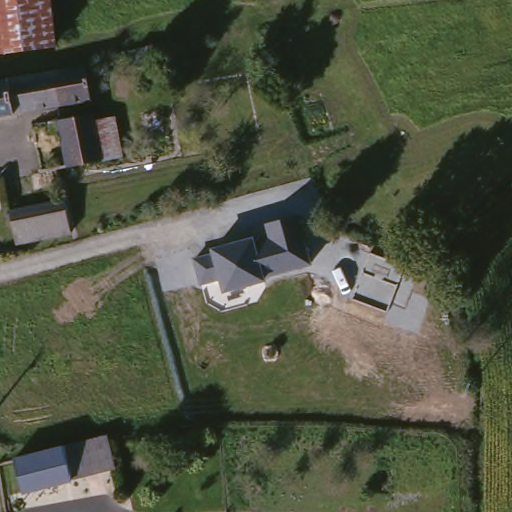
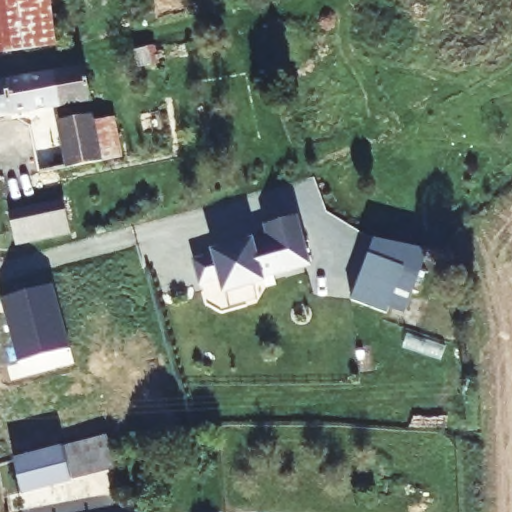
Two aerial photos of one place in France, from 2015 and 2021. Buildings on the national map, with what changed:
unchanged [(46,51),(0,58),(0,0),(39,0),(46,51)]
unchanged [(35,78),(89,70),(94,101),(24,112),(0,116),(0,83),(35,78)]
unchanged [(52,124),(91,116),(93,124),(115,119),(123,161),(64,173),(52,124)]
unchanged [(65,207),(70,240),(11,252),(5,214),(65,207)]
unchanged [(262,278),(265,283),(221,293),(218,281),(200,285),(193,257),(212,251),(211,246),(256,235),(258,242),(267,240),(265,224),(299,217),(310,264),(262,278)]
new [(406,266),(405,271),(418,276),(405,313),(390,306),(388,312),(352,299),(370,253),(406,266)]
new [(2,298),(54,284),(70,348),(18,362),(2,298)]
unchanged [(100,447),(103,478),(66,485),(64,455),(100,447)]
unchanged [(64,455),(66,485),(17,494),(12,464),(64,455)]

